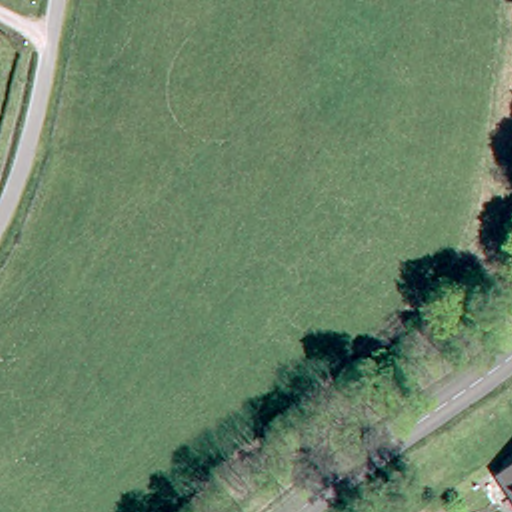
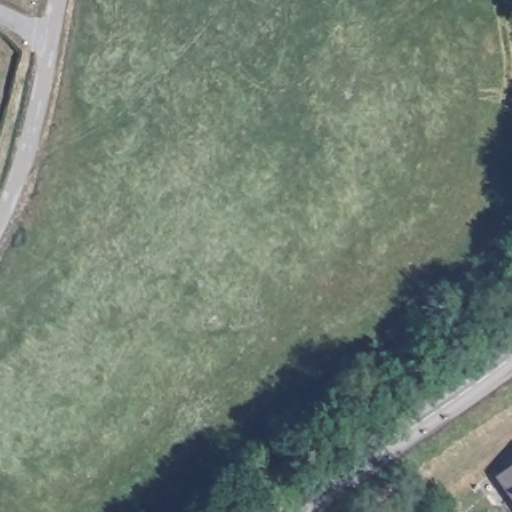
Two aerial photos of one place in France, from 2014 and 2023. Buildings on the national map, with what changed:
unchanged [(503,476),(512,469),(512,488),(503,476)]

